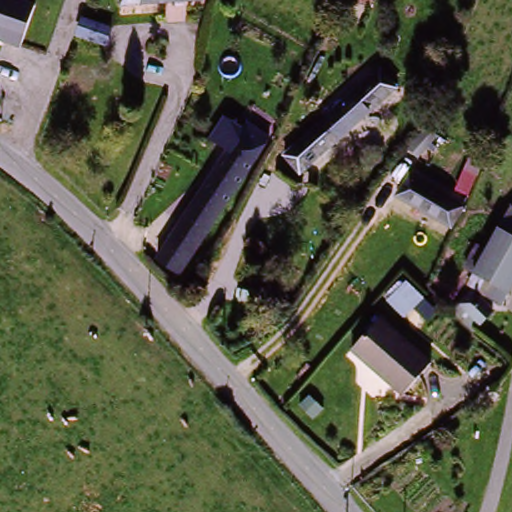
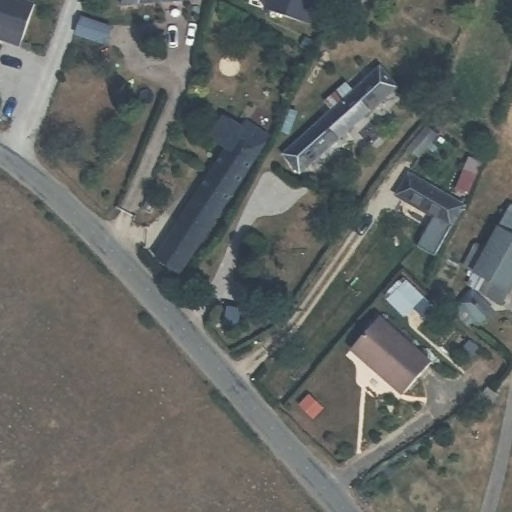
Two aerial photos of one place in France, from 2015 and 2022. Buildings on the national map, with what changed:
unchanged [(0,44),(0,0),(8,0),(39,12),(22,53),(0,44)]
unchanged [(194,3),(117,5),(117,0),(194,0),(194,3)]
new [(311,23),(265,8),(267,0),(319,0),(311,23)]
unchanged [(369,10),(347,3),(347,0),(373,0),(369,10)]
unchanged [(85,24),(113,33),(107,51),(80,41),(85,24)]
unchanged [(374,67),(391,86),(340,133),(300,172),(282,154),(374,67)]
unchanged [(269,96),(248,86),(257,69),(277,79),(269,96)]
unchanged [(445,136),(424,160),(413,151),(435,129),(445,136)]
unchanged [(162,249),(240,132),(264,148),(187,265),(176,280),(152,263),(162,249)]
unchanged [(470,166),(464,176),(454,170),(460,160),(470,166)]
unchanged [(402,176),(452,207),(440,227),(390,195),(402,176)]
unchanged [(481,289),(458,281),(469,251),(477,253),(497,204),(512,210),(512,283),(504,304),(485,296),(481,289)]
unchanged [(445,313),(448,310),(465,292),(486,313),(467,334),(445,313)]
unchanged [(397,398),(350,355),(380,321),(428,365),(397,398)]

